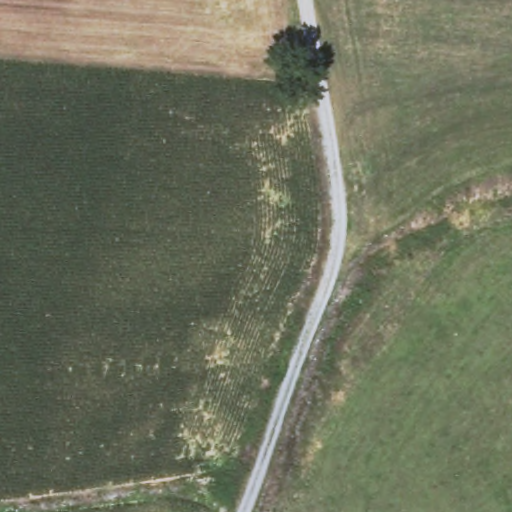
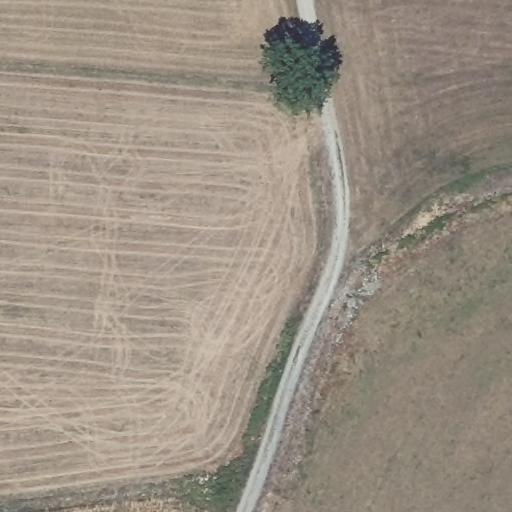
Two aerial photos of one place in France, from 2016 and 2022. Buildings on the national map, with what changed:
[]

